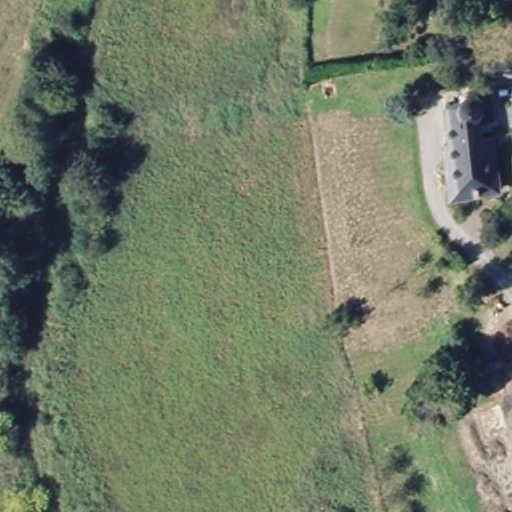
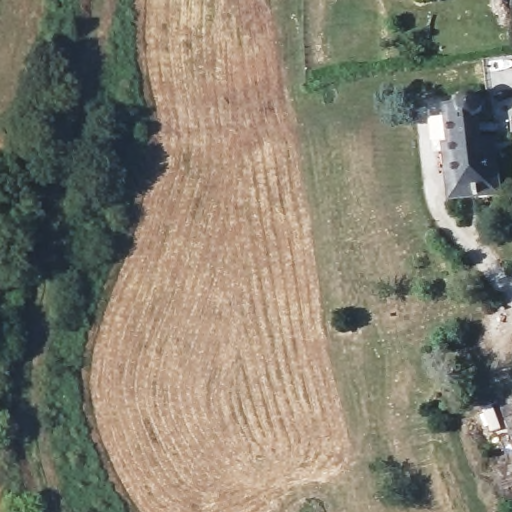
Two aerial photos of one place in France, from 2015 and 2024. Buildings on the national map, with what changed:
unchanged [(443,113),(465,113),(471,103),(487,105),(488,128),(477,132),(479,154),(495,157),(495,199),(444,198),(443,113)]

